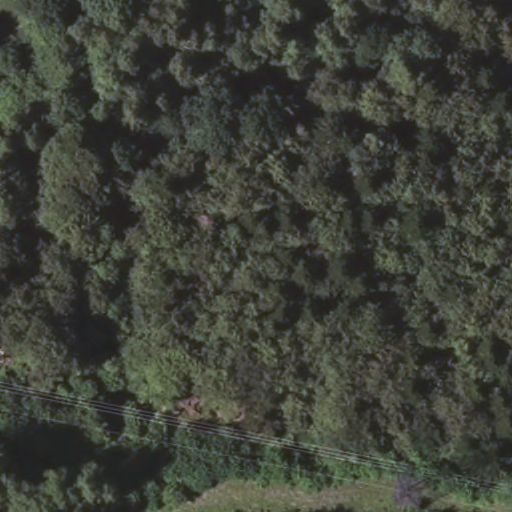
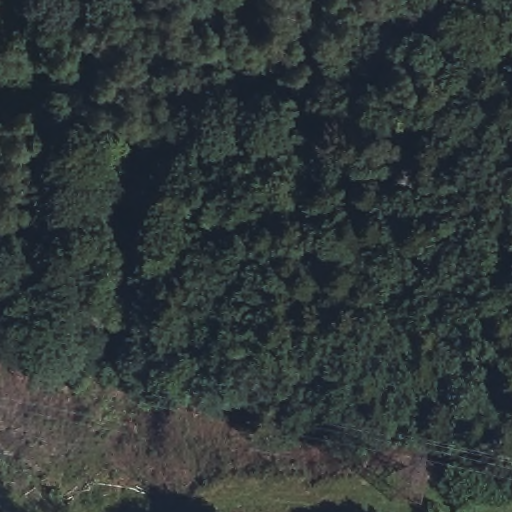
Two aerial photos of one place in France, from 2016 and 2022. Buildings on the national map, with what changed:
[]

